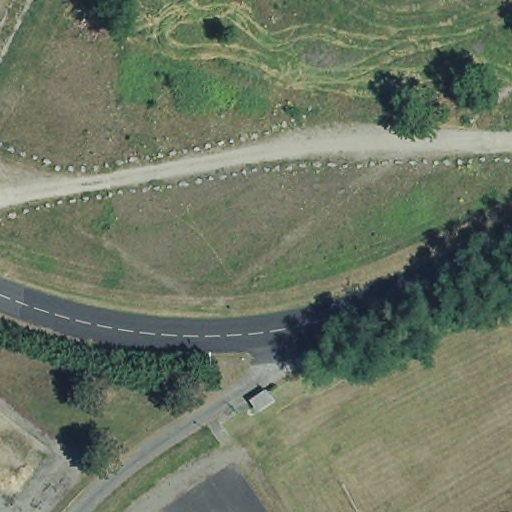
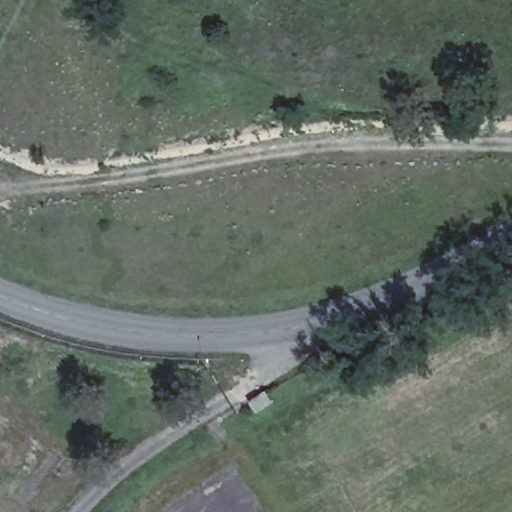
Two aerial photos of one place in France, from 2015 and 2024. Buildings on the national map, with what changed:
unchanged [(280,401),(264,413),(257,402),(274,392),(280,401)]

